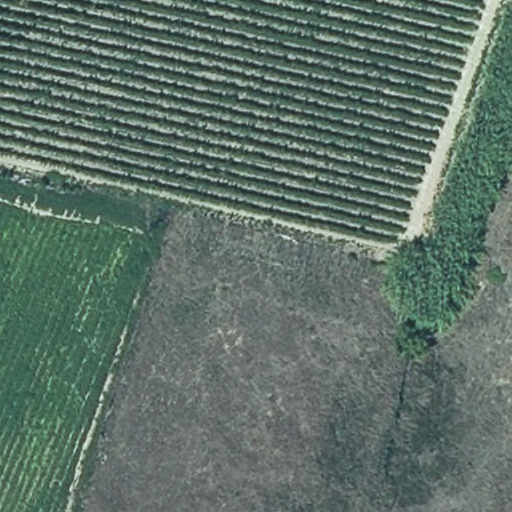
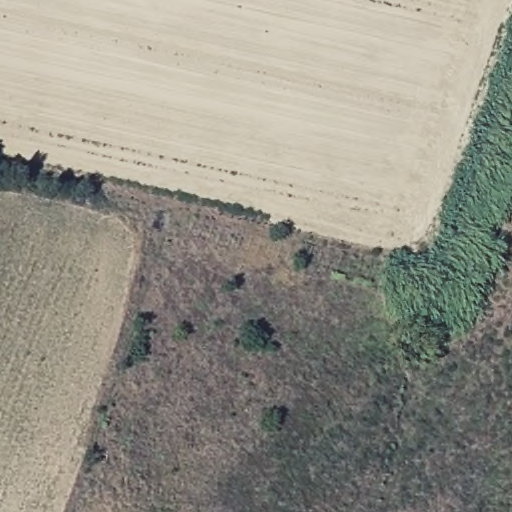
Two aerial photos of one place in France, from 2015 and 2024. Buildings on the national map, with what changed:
[]

